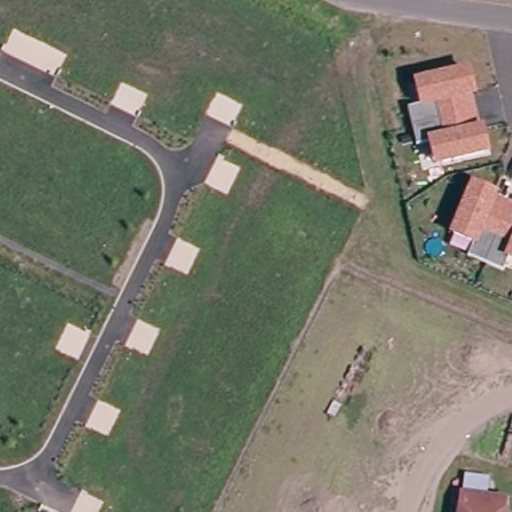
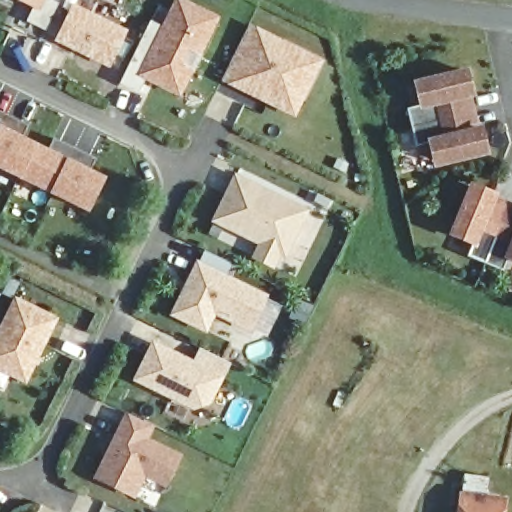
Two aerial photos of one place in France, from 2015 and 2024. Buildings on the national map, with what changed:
new [(16,0),(52,0),(60,3),(47,31),(27,22),(35,9),(16,0)]
new [(121,84),(152,21),(162,27),(176,0),(183,0),(220,18),(202,57),(191,51),(183,66),(193,72),(180,98),(146,81),(140,93),(121,84)]
new [(111,69),(56,41),(74,3),(129,31),(111,69)]
new [(222,82),(251,24),(325,61),(296,118),(222,82)]
unchanged [(436,169),(429,146),(418,149),(410,107),(420,104),(415,82),(470,68),(491,156),(436,169)]
new [(0,111),(30,126),(21,137),(38,144),(47,149),(55,138),(97,159),(90,170),(107,179),(89,214),(0,171),(0,111)]
new [(252,259),(258,245),(212,222),(236,174),(311,211),(287,260),(281,258),(275,271),(252,259)]
unchanged [(512,200),(512,260),(509,259),(505,270),(467,255),(472,244),(452,234),(471,184),(512,200)]
new [(269,294),(252,332),(217,316),(207,333),(171,316),(197,262),(269,294)]
new [(27,384),(0,371),(0,327),(16,295),(60,318),(27,384)]
new [(195,360),(200,349),(231,365),(211,405),(193,410),(133,382),(152,341),(195,360)]
new [(155,427),(149,439),(182,455),(167,489),(146,478),(136,498),(94,479),(125,413),(155,427)]
unchanged [(510,504),(508,512),(471,512),(474,498),(510,504)]

